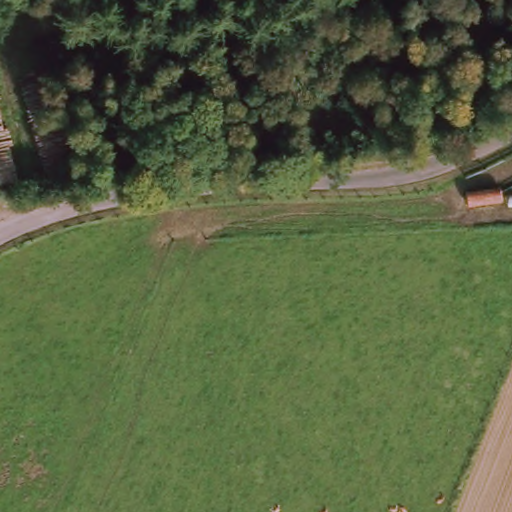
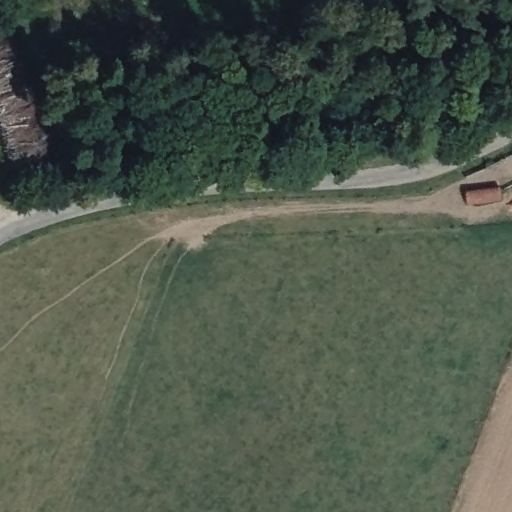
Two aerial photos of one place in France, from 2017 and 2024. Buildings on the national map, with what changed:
unchanged [(460,198),(498,192),(500,207),(463,211),(460,198)]

